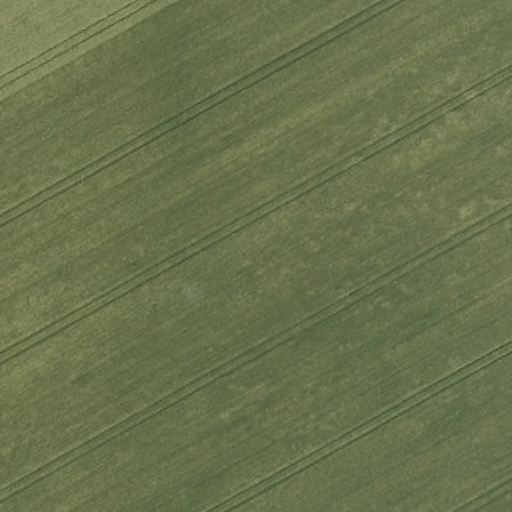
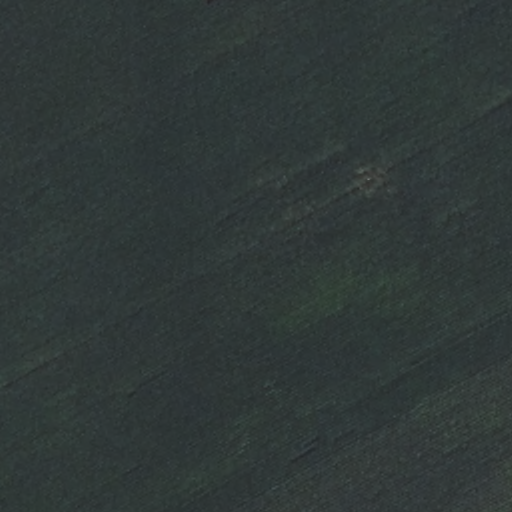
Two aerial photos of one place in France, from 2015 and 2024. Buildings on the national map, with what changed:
[]

